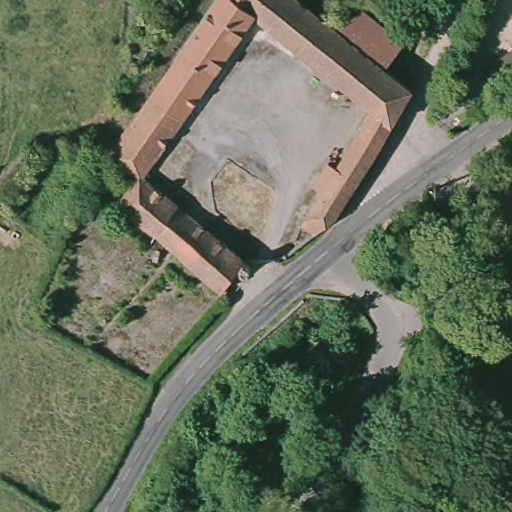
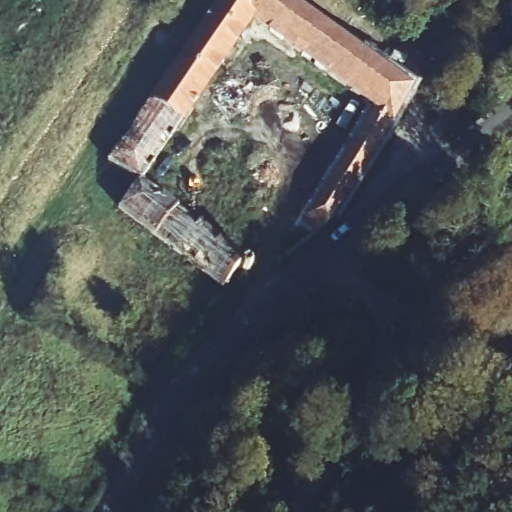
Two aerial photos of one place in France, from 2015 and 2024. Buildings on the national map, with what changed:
unchanged [(316,219),(312,222),(300,213),(371,101),(253,11),(141,165),(145,168),(140,174),(157,186),(160,181),(171,188),(167,194),(240,248),(238,252),(244,256),(240,262),(234,258),(220,274),(155,225),(150,221),(115,195),(135,170),(125,162),(105,147),(116,134),(117,133),(147,91),(189,32),(212,0),(304,0),(335,24),(337,25),(386,62),(411,82),(333,207),(316,219)]
unchanged [(404,39),(386,62),(337,25),(335,24),(352,1),(404,39)]
unchanged [(510,54),(512,57),(512,86),(495,100),(480,79),(510,54)]
unchanged [(509,293),(512,290),(512,296),(509,293)]

